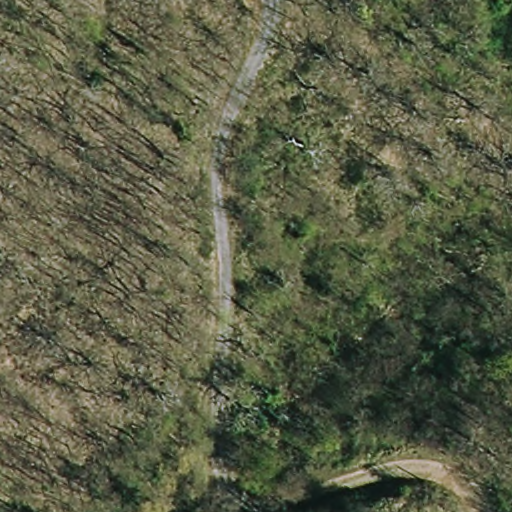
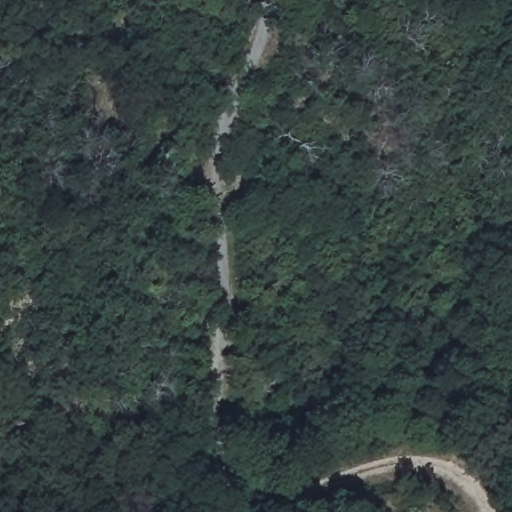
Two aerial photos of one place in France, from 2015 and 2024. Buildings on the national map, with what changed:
[]

